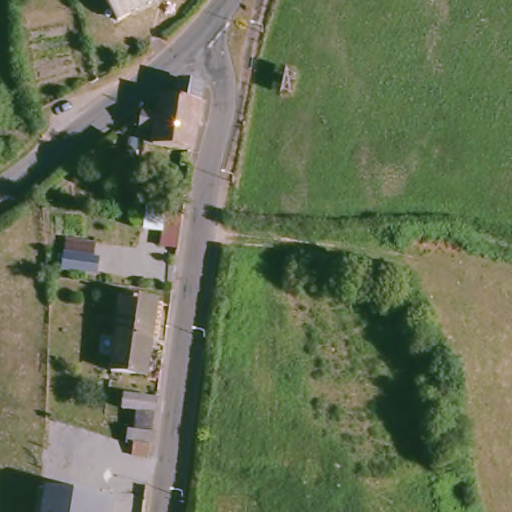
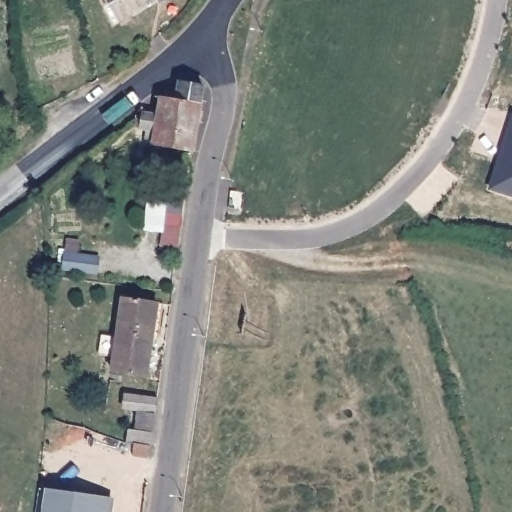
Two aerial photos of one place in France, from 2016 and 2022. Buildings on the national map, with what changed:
unchanged [(122,0),(159,0),(130,17),(122,0)]
unchanged [(197,154),(154,144),(155,133),(141,131),(144,117),(161,118),(165,100),(180,100),(182,85),(207,89),(197,154)]
new [(510,112),(512,113),(512,199),(485,189),(510,112)]
unchanged [(184,212),(180,245),(164,242),(167,224),(148,221),(152,195),(170,197),(167,210),(184,212)]
unchanged [(66,262),(100,265),(99,280),(65,276),(66,262)]
unchanged [(150,375),(115,371),(123,324),(127,301),(161,304),(150,375)]
unchanged [(139,456),(139,445),(130,441),(132,422),(134,414),(122,412),(124,396),(139,399),(139,388),(155,389),(157,379),(167,380),(155,461),(139,456)]
unchanged [(47,512),(50,488),(112,497),(109,512),(47,512)]

